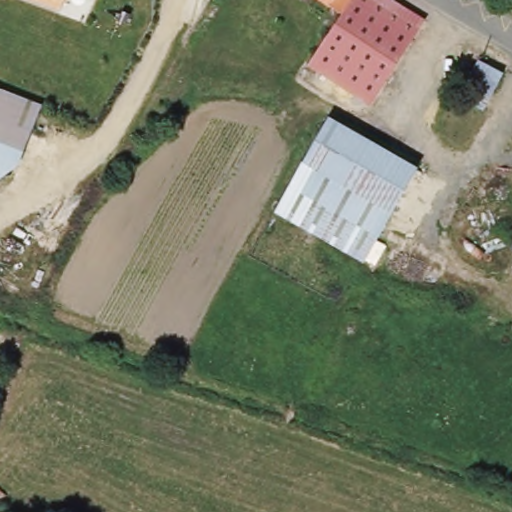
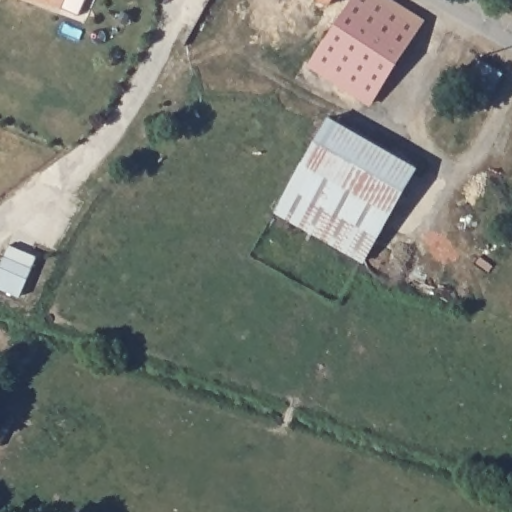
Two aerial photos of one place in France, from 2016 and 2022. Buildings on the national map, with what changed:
unchanged [(82,17),(40,0),(89,0),(82,17)]
unchanged [(351,0),(394,0),(427,21),(376,107),(311,67),(340,15),(351,0)]
unchanged [(340,15),(315,0),(351,0),(340,15)]
unchanged [(461,97),(473,75),(461,69),(471,49),(485,55),(482,60),(510,73),(487,112),(461,97)]
demolished [(16,169),(0,179),(0,88),(40,104),(16,169)]
unchanged [(414,166),(366,260),(275,209),(328,117),(414,166)]

